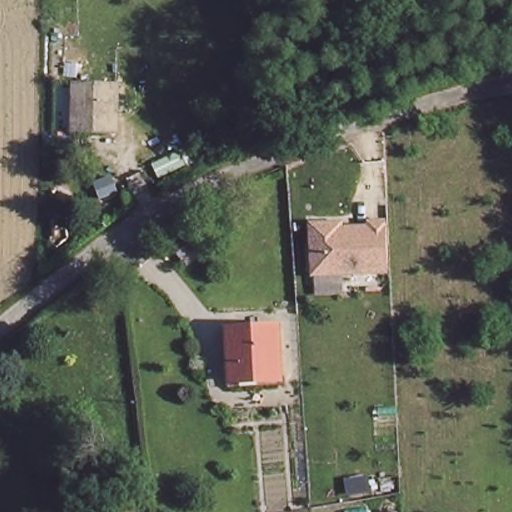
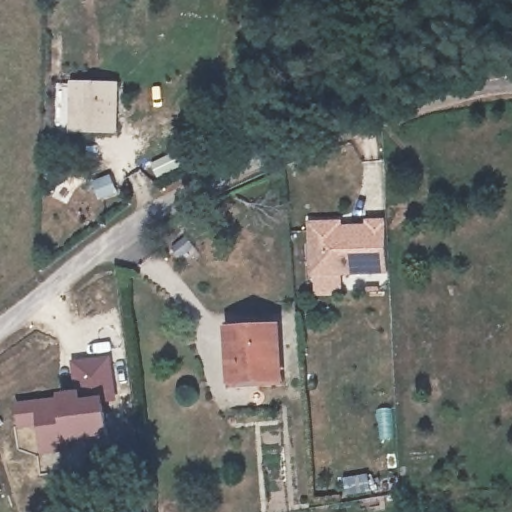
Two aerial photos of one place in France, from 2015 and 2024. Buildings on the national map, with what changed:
unchanged [(76,128),(76,82),(113,80),(115,128),(76,128)]
unchanged [(371,219),(388,219),(389,269),(314,270),(314,220),(335,220),(343,220),(343,225),(371,224),(371,219)]
unchanged [(234,379),(233,324),(279,322),(282,378),(234,379)]
new [(104,403),(108,439),(71,443),(73,454),(42,456),(38,427),(18,428),(15,404),(57,395),(74,392),(71,363),(111,358),(116,401),(104,403)]

